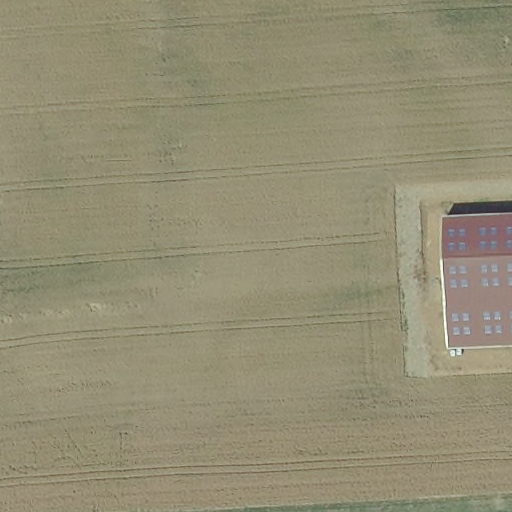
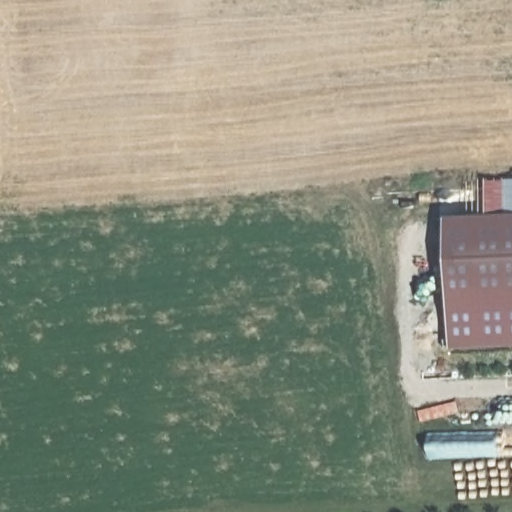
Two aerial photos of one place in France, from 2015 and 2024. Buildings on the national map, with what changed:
unchanged [(452,348),(446,218),(512,215),(512,345),(452,348)]

